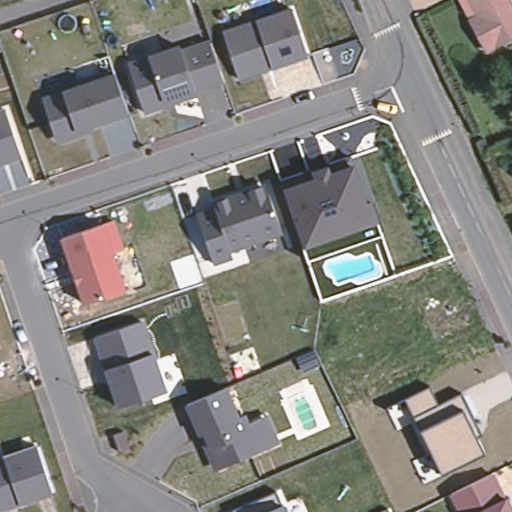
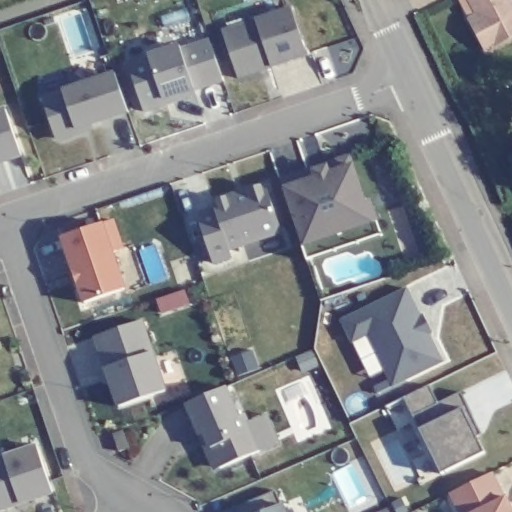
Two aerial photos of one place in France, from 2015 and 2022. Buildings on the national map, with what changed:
unchanged [(467,9),(463,0),(511,0),(512,3),(512,27),(478,41),(475,32),(465,10),(467,9)]
unchanged [(224,32),(293,9),(309,56),(273,68),(272,63),(260,67),(257,74),(240,79),(224,32)]
unchanged [(181,47),(182,51),(211,41),(219,65),(225,81),(196,91),(197,95),(180,101),(178,96),(165,100),(167,105),(145,112),(129,64),(181,47)]
unchanged [(74,137),(62,141),(56,137),(43,99),(117,74),(122,90),(130,112),(92,125),(94,130),(74,137)]
unchanged [(7,110),(22,156),(0,164),(0,112),(7,110)]
unchanged [(295,227),(276,171),(305,161),(308,171),(330,163),(327,154),(346,147),(362,195),(367,193),(373,212),(298,237),(295,227)]
unchanged [(214,204),(232,197),(250,191),(262,187),(268,190),(283,233),(231,251),(233,257),(215,264),(198,216),(216,210),(214,204)]
unchanged [(373,212),(378,226),(303,252),(299,239),(298,237),(373,212)]
unchanged [(63,238),(113,221),(123,250),(113,254),(126,291),(86,305),(63,238)]
new [(408,290),(444,363),(394,387),(369,337),(353,344),(342,322),(408,290)]
unchanged [(105,371),(93,337),(145,321),(156,353),(167,392),(117,408),(105,371)]
unchanged [(280,445),(262,452),(221,470),(215,467),(210,456),(213,449),(206,434),(202,437),(187,405),(226,387),(240,419),(245,417),(249,424),(267,416),(280,445)]
unchanged [(422,432),(414,418),(405,399),(430,387),(438,405),(461,393),(482,433),(476,437),(485,452),(442,474),(422,432)]
unchanged [(115,436),(125,432),(130,450),(120,453),(115,436)]
unchanged [(3,456),(37,445),(53,494),(20,506),(1,512),(0,512),(0,457),(3,456)]
unchanged [(452,494),(492,475),(505,500),(507,499),(512,509),(512,512),(461,512),(452,494)]
unchanged [(233,511),(274,491),(281,506),(285,505),(288,512),(234,512),(233,511)]

